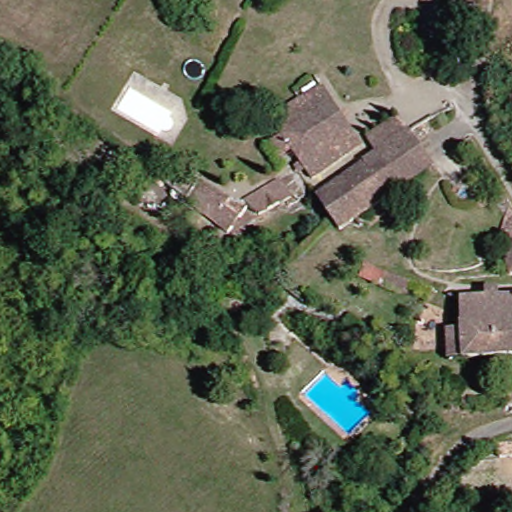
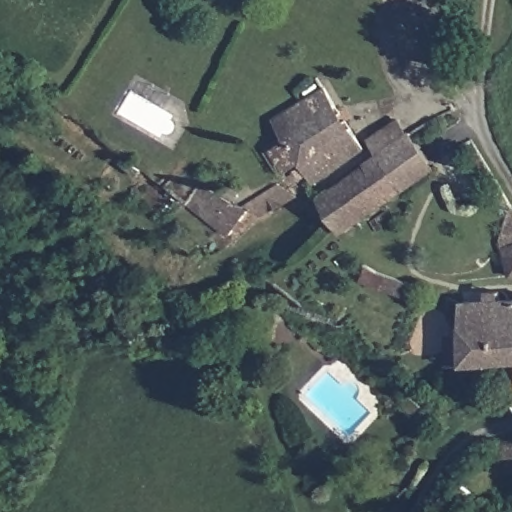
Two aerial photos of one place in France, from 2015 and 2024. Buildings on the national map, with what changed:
unchanged [(359,129),(370,146),(322,179),(282,125),(330,90),(342,106),(359,129)]
unchanged [(444,168),(412,188),(389,155),(420,134),(444,168)]
unchanged [(331,198),(389,155),(412,188),(356,228),(339,211),(331,198)]
unchanged [(197,183),(245,209),(284,180),(305,195),(270,220),(254,211),(232,228),(182,197),(197,183)]
unchanged [(507,238),(512,236),(512,279),(508,279),(507,238)]
unchanged [(416,282),(409,298),(366,281),(372,266),(416,282)]
unchanged [(460,360),(460,329),(474,328),(474,303),(512,303),(512,357),(474,360),(460,360)]
unchanged [(512,442),(512,455),(495,456),(495,444),(512,442)]

